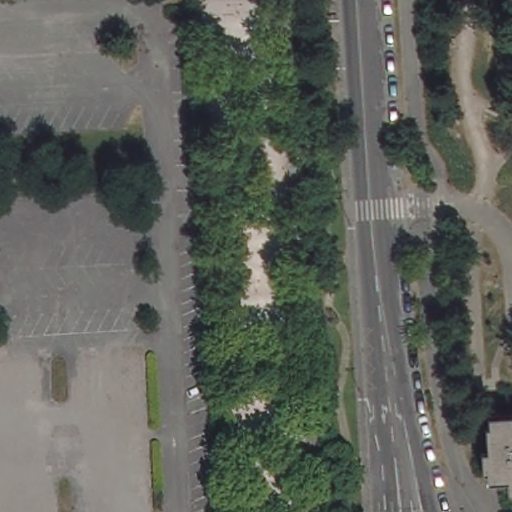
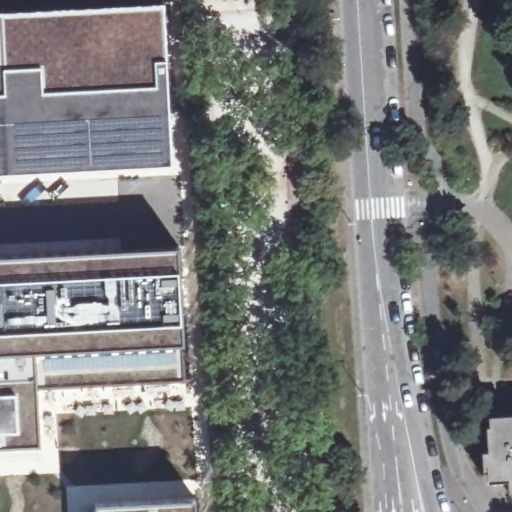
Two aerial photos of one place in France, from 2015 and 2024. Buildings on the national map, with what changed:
new [(167,61),(171,162),(0,172),(0,14),(164,5),(167,61)]
new [(182,343),(185,382),(38,387),(40,446),(0,447),(0,258),(177,248),(182,343)]
demolished [(82,355),(142,352),(150,502),(137,503),(137,512),(90,512),(86,416),(85,407),(82,355)]
demolished [(32,508),(32,512),(0,512),(0,359),(38,357),(40,409),(41,418),(45,507),(32,508)]
unchanged [(487,424),(512,423),(512,495),(508,491),(507,470),(483,470),(482,449),(487,449),(487,424)]
new [(194,499),(194,512),(96,512),(96,504),(194,499)]

